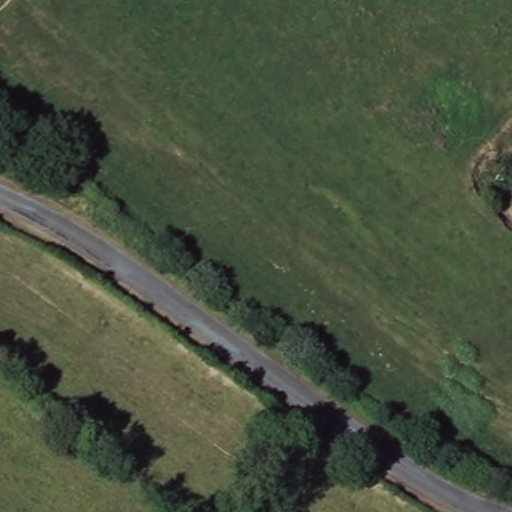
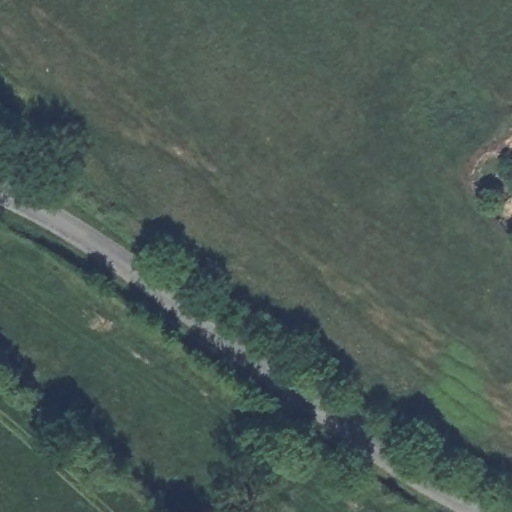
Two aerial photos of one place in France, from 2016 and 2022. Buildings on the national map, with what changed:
unchanged [(512,147),(512,150),(511,149),(512,147)]

